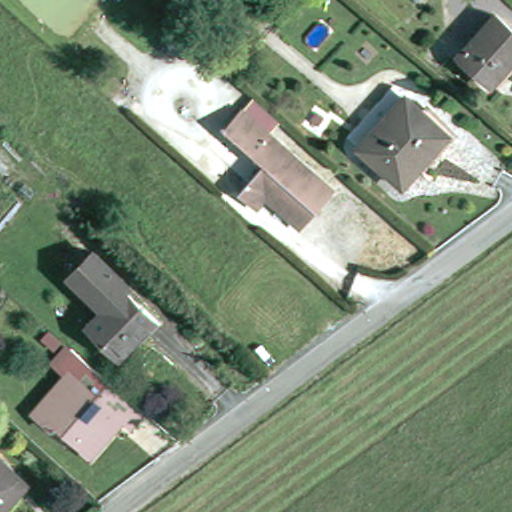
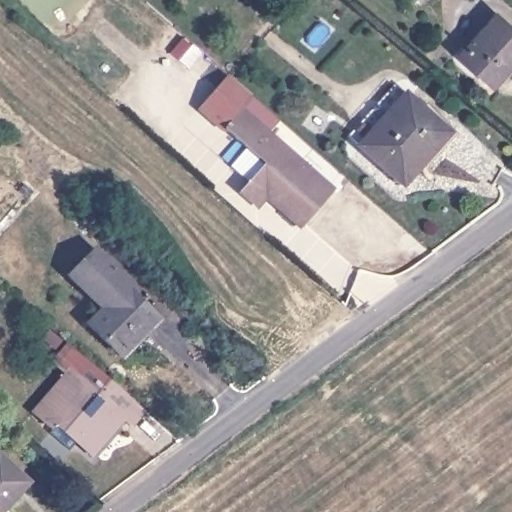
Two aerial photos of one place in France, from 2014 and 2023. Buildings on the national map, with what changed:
unchanged [(512,32),(512,65),(492,88),(458,58),(495,16),(512,32)]
new [(252,96),(222,132),(196,110),(226,75),(252,96)]
unchanged [(413,191),(367,151),(358,143),(403,92),(413,101),(458,141),(413,191)]
unchanged [(338,196),(308,232),(280,207),(282,204),(274,198),(259,214),(243,200),(268,171),(228,135),(245,115),(247,116),(259,103),(286,126),(274,140),(338,196)]
unchanged [(111,315),(77,283),(99,259),(135,292),(129,298),(160,326),(127,362),(94,332),(111,315)]
unchanged [(110,383),(96,397),(73,377),(52,357),(66,341),(110,383)]
unchanged [(128,426),(122,421),(92,456),(57,427),(53,431),(37,417),(73,377),(96,397),(110,383),(141,411),(128,426)]
unchanged [(1,455),(35,486),(12,511),(14,512),(0,512),(0,454),(1,455)]

